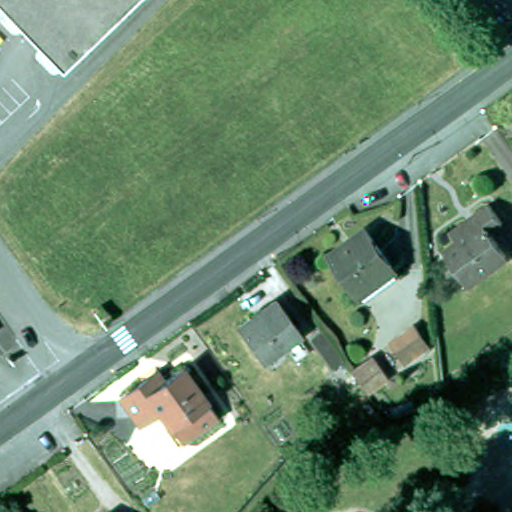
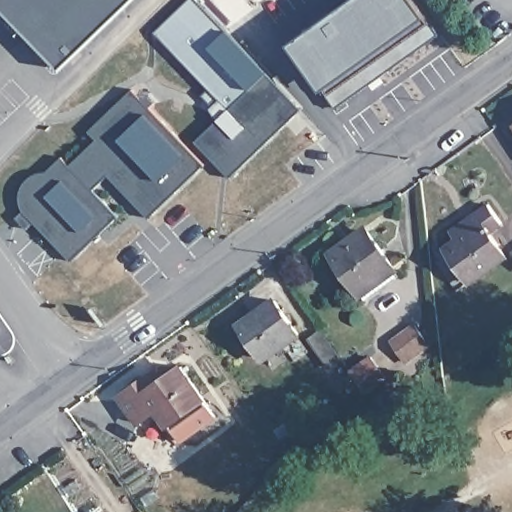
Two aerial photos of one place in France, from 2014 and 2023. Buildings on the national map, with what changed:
unchanged [(58,71),(0,9),(0,0),(133,0),(58,71)]
new [(336,105),(292,44),(353,0),(418,0),(440,30),(336,105)]
new [(230,177),(196,141),(218,120),(211,107),(220,99),(230,108),(268,72),(302,108),(230,177)]
new [(207,169),(151,221),(110,178),(95,193),(120,219),(73,264),(37,225),(30,232),(19,220),(26,214),(22,201),(23,195),(25,190),(28,184),(31,181),(40,176),(49,175),(65,160),(72,168),(99,143),(91,134),(135,93),(207,169)]
unchanged [(457,238),(452,231),(475,214),(487,205),(493,214),(495,213),(502,221),(488,232),(503,255),(456,288),(435,260),(445,252),(440,247),(457,238)]
unchanged [(362,296),(337,262),(372,236),(397,271),(362,296)]
unchanged [(302,339),(267,363),(242,330),(278,305),(302,339)]
unchanged [(411,363),(395,343),(405,336),(402,332),(413,323),(432,348),(411,363)]
unchanged [(334,375),(312,344),(322,337),(345,368),(334,375)]
unchanged [(388,381),(367,396),(352,375),(373,361),(388,381)]
unchanged [(218,419),(182,445),(161,414),(142,427),(124,402),(159,377),(165,385),(185,371),(218,419)]
unchanged [(105,512),(107,510),(108,512),(105,512)]

